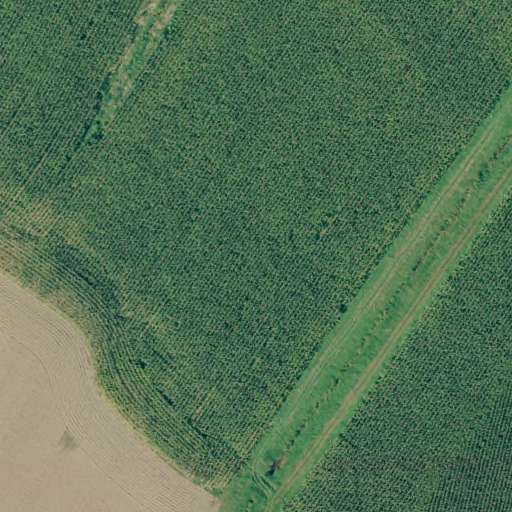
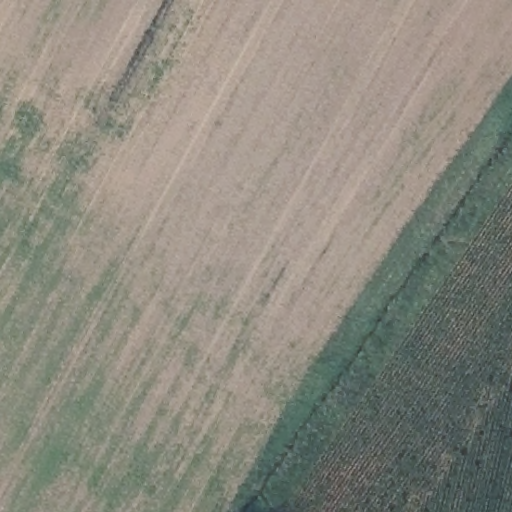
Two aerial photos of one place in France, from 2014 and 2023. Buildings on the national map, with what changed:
[]

